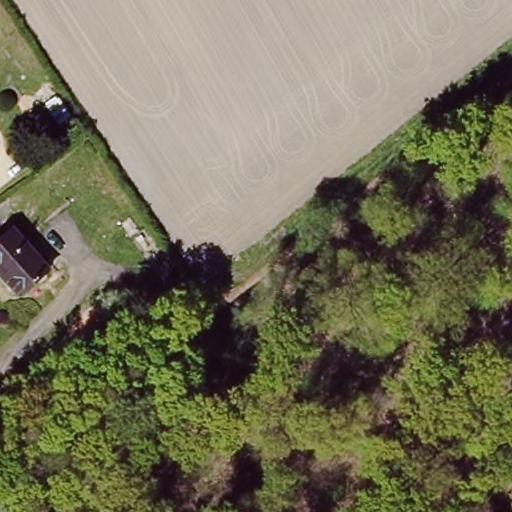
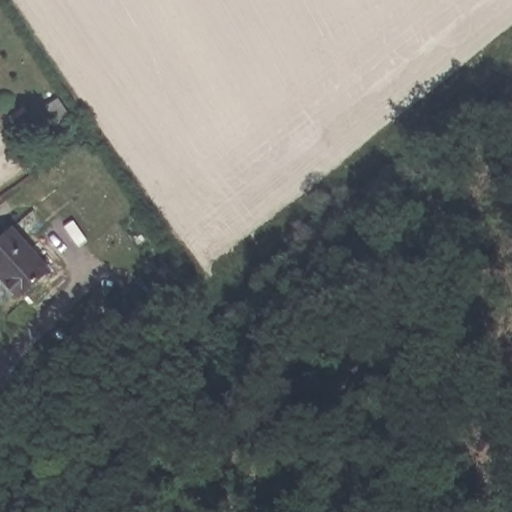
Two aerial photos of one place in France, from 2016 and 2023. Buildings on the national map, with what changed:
unchanged [(18,295),(0,275),(0,233),(7,227),(46,268),(18,295)]

